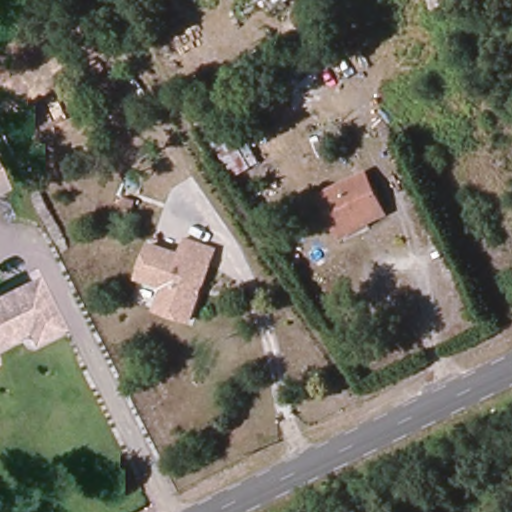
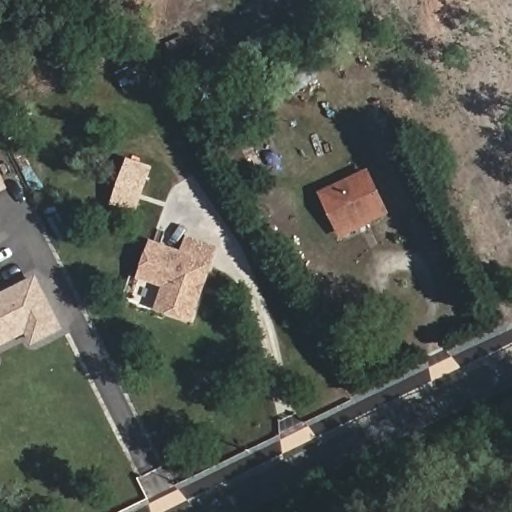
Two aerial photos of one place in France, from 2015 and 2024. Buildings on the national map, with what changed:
new [(110,207),(126,159),(151,167),(137,210),(110,207)]
unchanged [(390,217),(338,242),(314,199),(366,170),(390,217)]
unchanged [(0,194),(0,179),(6,191),(0,194)]
unchanged [(177,251),(183,236),(216,247),(190,322),(153,311),(159,289),(134,281),(147,242),(177,251)]
unchanged [(60,331),(29,347),(23,334),(0,346),(0,293),(33,277),(60,331)]

